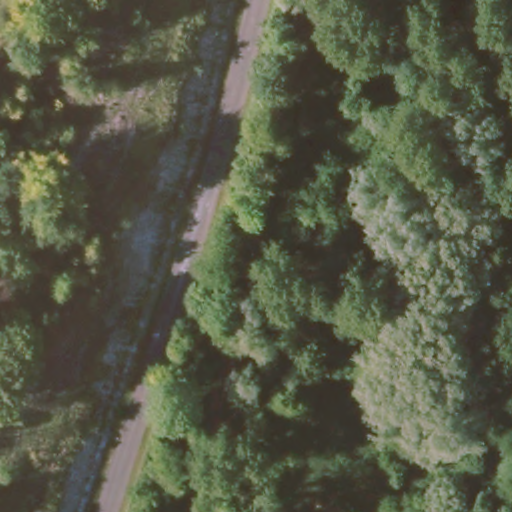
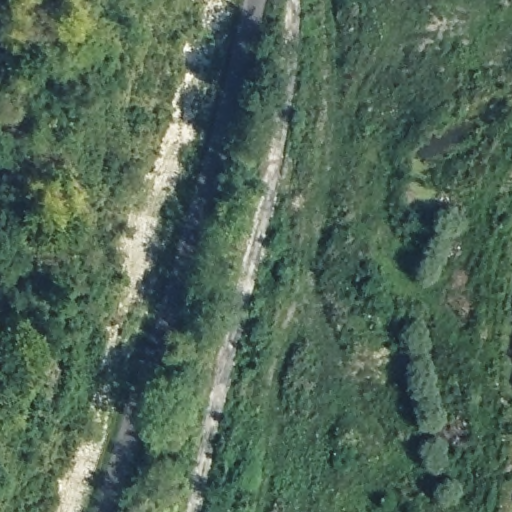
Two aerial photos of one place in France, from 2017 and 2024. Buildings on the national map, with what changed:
unchanged [(512,59),(503,58),(502,76),(488,75),(489,55),(477,54),(476,28),(512,28),(512,43),(512,59)]
unchanged [(458,346),(458,320),(449,320),(449,300),(462,301),(464,281),(489,284),(480,346),(458,346)]

